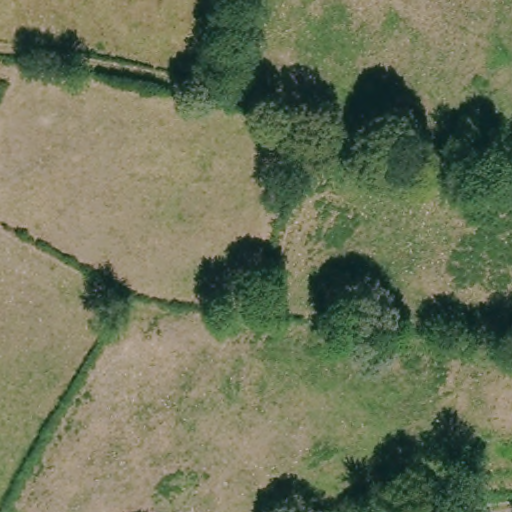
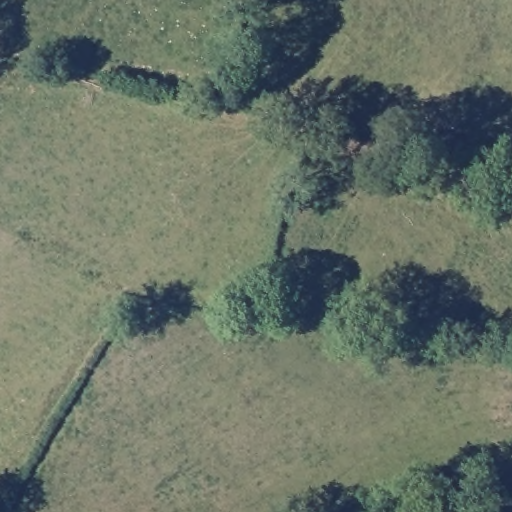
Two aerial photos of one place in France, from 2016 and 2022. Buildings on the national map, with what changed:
[]

